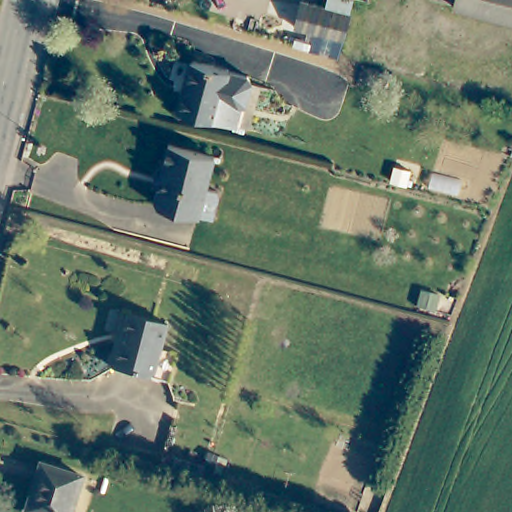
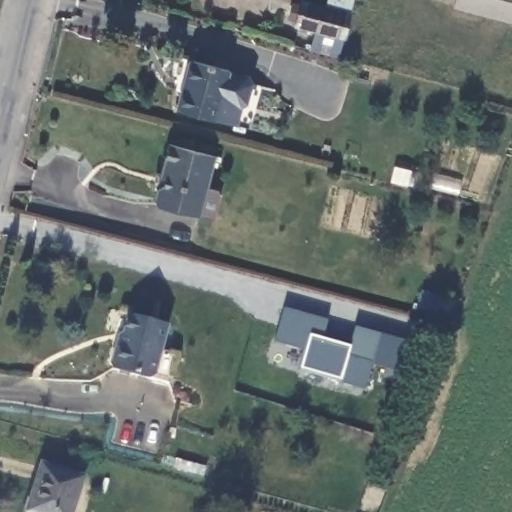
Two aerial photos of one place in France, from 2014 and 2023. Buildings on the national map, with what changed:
unchanged [(310,49),(315,30),(294,26),(300,0),(302,0),(325,5),(326,0),(353,0),(343,35),(343,37),(338,55),(310,49)]
unchanged [(456,8),(458,0),(512,0),(512,21),(456,8)]
unchanged [(240,80),(235,101),(230,105),(226,123),(206,119),(206,120),(167,111),(178,60),(217,69),(217,70),(236,74),(240,80)]
unchanged [(219,198),(214,222),(199,219),(199,220),(157,212),(154,206),(156,195),(152,189),(154,180),(159,180),(166,149),(212,159),(205,190),(216,193),(219,198)]
new [(328,321),(323,339),(350,347),(356,327),(381,334),(365,390),(340,380),(300,369),(305,351),(274,343),(285,309),(328,321)]
unchanged [(123,343),(131,318),(169,328),(162,352),(123,343)]
unchanged [(123,343),(162,352),(156,375),(149,381),(120,373),(115,368),(120,343),(123,343)]
unchanged [(44,468),(79,478),(69,512),(32,512),(44,468)]

